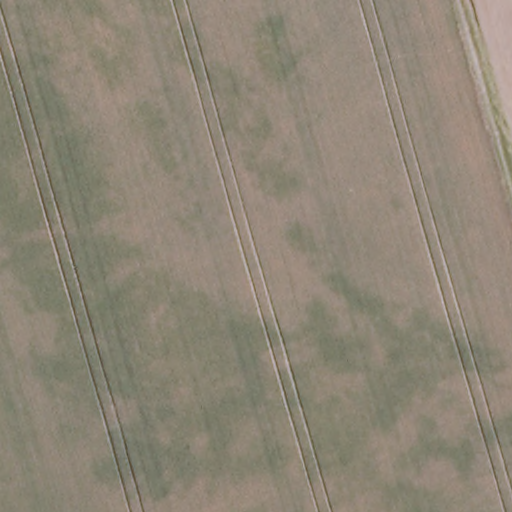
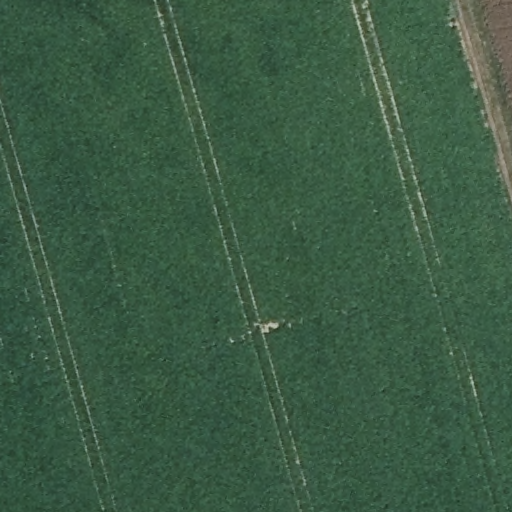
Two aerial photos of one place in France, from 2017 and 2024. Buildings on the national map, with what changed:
[]

